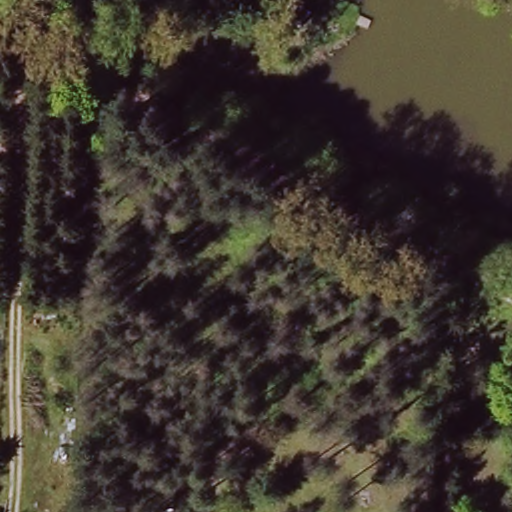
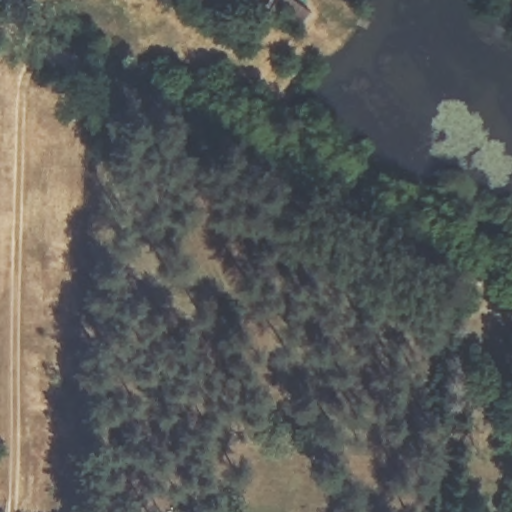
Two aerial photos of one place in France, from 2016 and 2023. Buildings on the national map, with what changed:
unchanged [(326,13),(313,32),(267,0),(305,0),(326,13)]

